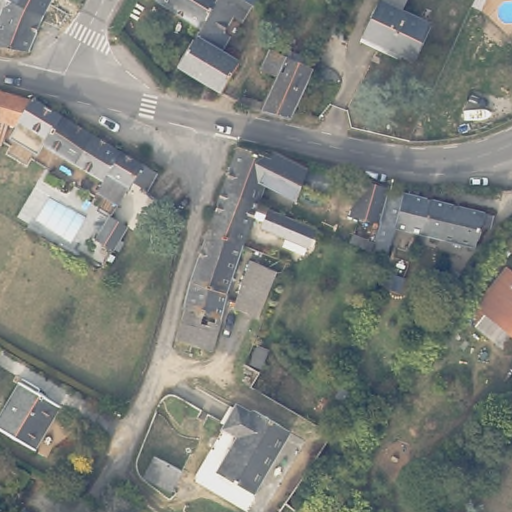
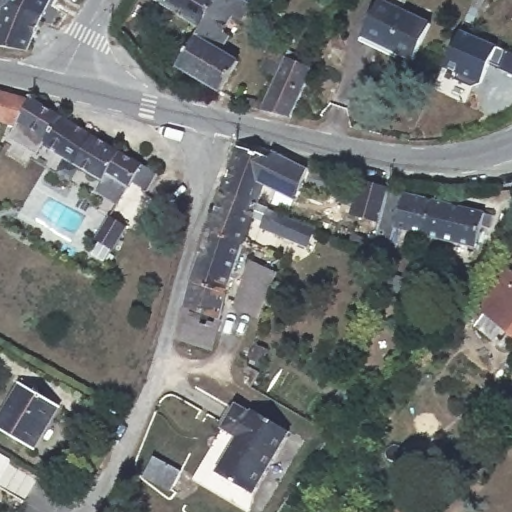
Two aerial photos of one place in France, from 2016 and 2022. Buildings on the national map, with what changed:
unchanged [(30,50),(6,47),(0,45),(0,14),(3,9),(0,7),(0,0),(17,0),(22,2),(44,14),(42,19),(30,50)]
unchanged [(17,0),(54,0),(53,2),(46,14),(44,14),(22,2),(17,0)]
unchanged [(152,0),(214,0),(197,28),(152,0)]
unchanged [(235,62),(218,92),(175,67),(197,28),(214,0),(239,0),(248,5),(238,23),(230,19),(222,33),(227,37),(219,51),(235,62)]
unchanged [(253,0),(250,6),(248,5),(239,0),(253,0)]
unchanged [(432,23),(414,61),(365,37),(382,1),(432,23)]
new [(461,30),(498,45),(512,51),(512,71),(491,62),(482,82),(479,81),(472,86),(457,79),(458,73),(443,67),(461,30)]
unchanged [(305,87),(293,112),(263,106),(278,72),(262,65),(271,45),(288,52),(315,64),(305,87)]
unchanged [(44,146),(43,147),(38,156),(10,139),(18,126),(0,120),(0,91),(33,102),(34,100),(35,101),(60,115),(61,117),(62,116),(94,135),(94,136),(108,144),(141,163),(158,174),(151,187),(149,191),(135,182),(131,187),(130,187),(122,204),(99,191),(104,181),(44,146)]
unchanged [(226,182),(236,155),(239,147),(272,160),(276,152),(309,170),(300,193),(299,192),(296,201),(267,185),(259,205),(223,192),(226,182)]
unchanged [(389,222),(380,254),(364,248),(372,219),(345,211),(354,177),(381,184),(477,209),(484,211),(481,220),(474,217),(468,242),(389,222)]
unchanged [(215,215),(223,192),(259,205),(286,216),(319,230),(312,249),(264,232),(267,224),(255,220),(245,246),(228,240),(209,234),(215,215)]
unchanged [(121,242),(105,266),(88,254),(104,232),(121,242)]
unchanged [(179,339),(182,328),(187,308),(187,306),(191,286),(192,282),(196,273),(207,240),(209,234),(228,240),(245,246),(229,294),(223,320),(215,352),(179,339)]
unchanged [(277,271),(260,317),(237,308),(253,262),(277,271)]
unchanged [(477,316),(475,315),(479,310),(510,268),(512,270),(512,339),(506,347),(478,326),(479,325),(473,321),(477,316)]
unchanged [(35,448),(0,428),(0,419),(21,383),(60,405),(35,448)]
unchanged [(250,425),(252,422),(286,442),(252,502),(216,482),(236,447),(221,438),(234,415),(250,425)]
unchanged [(184,472),(174,491),(146,477),(156,457),(184,472)]

